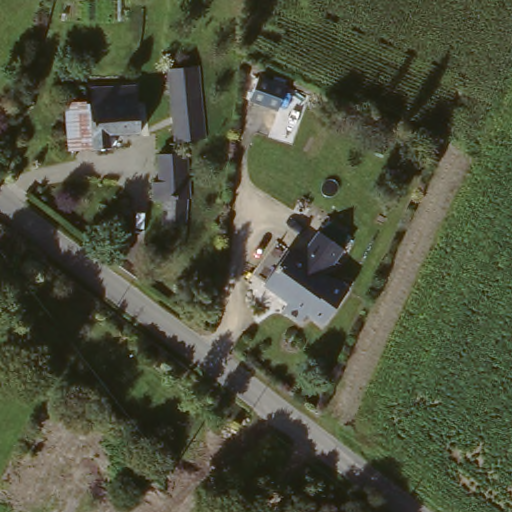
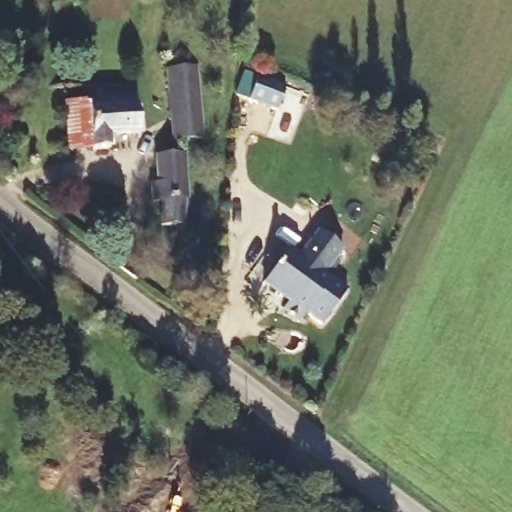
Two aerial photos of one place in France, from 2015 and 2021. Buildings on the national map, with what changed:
unchanged [(183,142),(173,141),(169,72),(194,71),(201,141),(183,142)]
unchanged [(63,106),(68,80),(119,89),(116,112),(63,106)]
unchanged [(111,142),(79,139),(76,151),(58,148),(63,106),(116,112),(111,142)]
unchanged [(158,204),(151,204),(152,189),(156,189),(159,156),(182,159),(180,206),(158,204)]
unchanged [(331,282),(346,293),(321,325),(305,314),(301,319),(282,307),(288,298),(264,280),(286,249),(297,255),(316,230),(342,249),(321,279),(328,283),(331,282)]

